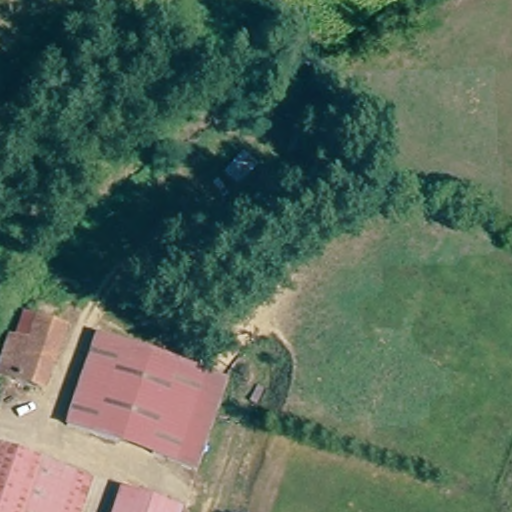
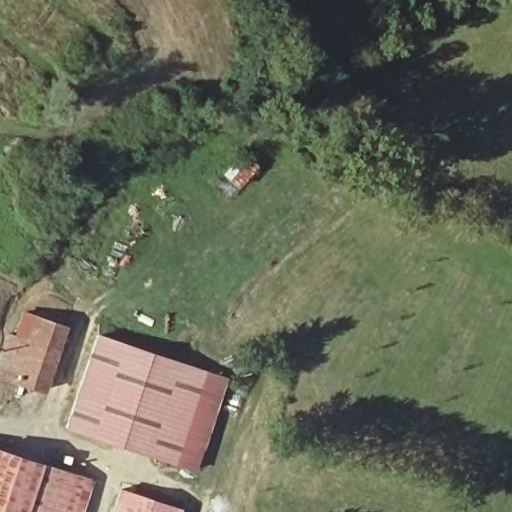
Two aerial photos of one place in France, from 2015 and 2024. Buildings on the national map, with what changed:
unchanged [(66,328),(47,391),(0,379),(14,334),(34,341),(40,319),(66,328)]
unchanged [(220,375),(184,465),(81,422),(117,334),(220,375)]
unchanged [(77,512),(0,512),(0,450),(87,482),(77,512)]
unchanged [(175,512),(116,512),(124,494),(175,512)]

